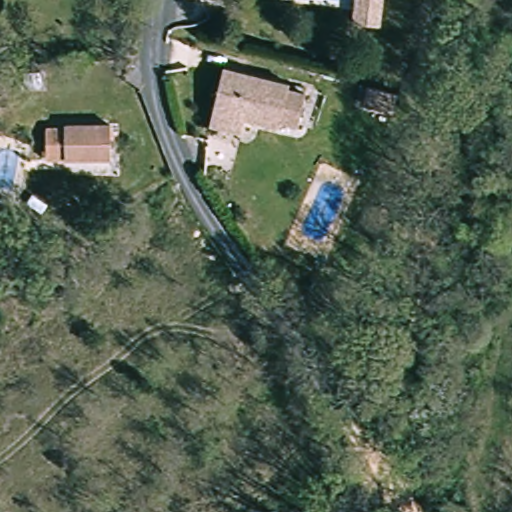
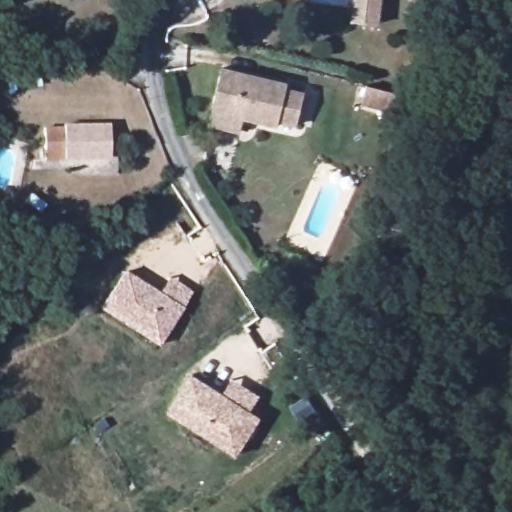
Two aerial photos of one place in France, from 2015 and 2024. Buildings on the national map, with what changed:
unchanged [(352,0),(377,0),(374,22),(349,19),(352,0)]
unchanged [(206,131),(209,115),(219,75),(286,90),(285,95),(300,99),(293,129),(277,125),(273,132),(242,124),(238,138),(206,131)]
unchanged [(100,131),(98,160),(51,157),(54,129),(100,131)]
new [(158,294),(169,278),(191,293),(181,310),(156,346),(100,310),(125,272),(158,294)]
new [(225,397),(235,382),(262,401),(252,415),(261,422),(235,458),(170,413),(195,377),(225,397)]

